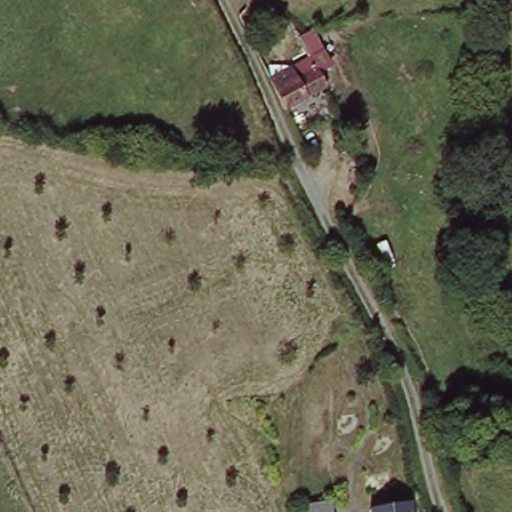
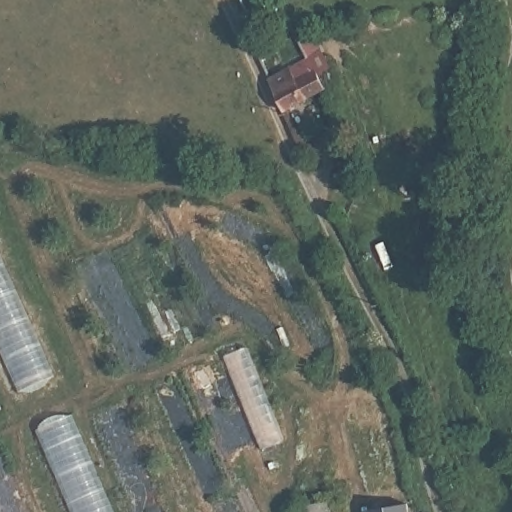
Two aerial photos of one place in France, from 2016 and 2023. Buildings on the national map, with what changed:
unchanged [(310,69),(317,65),(328,88),(307,99),(288,110),(277,86),(295,76),(310,69)]
new [(19,389),(0,347),(0,243),(55,375),(19,389)]
new [(247,345),(287,439),(263,451),(222,356),(247,345)]
new [(71,417),(113,512),(71,512),(37,432),(71,417)]
unchanged [(302,504),(326,502),(328,512),(304,512),(302,504)]
unchanged [(407,508),(407,512),(370,512),(370,510),(407,508)]

